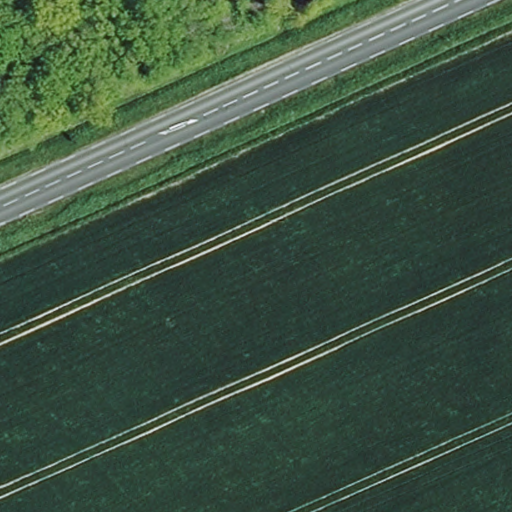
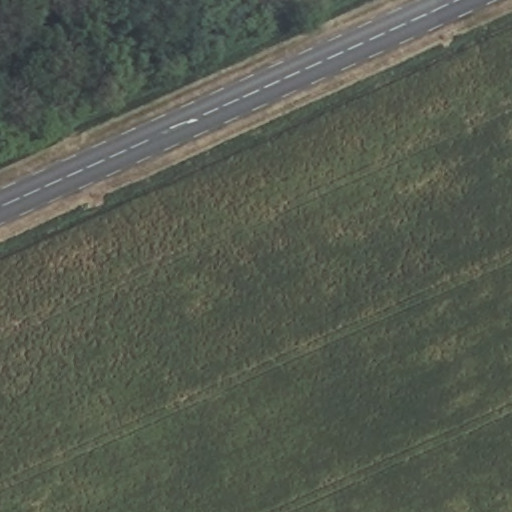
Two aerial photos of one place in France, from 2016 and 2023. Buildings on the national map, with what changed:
[]

